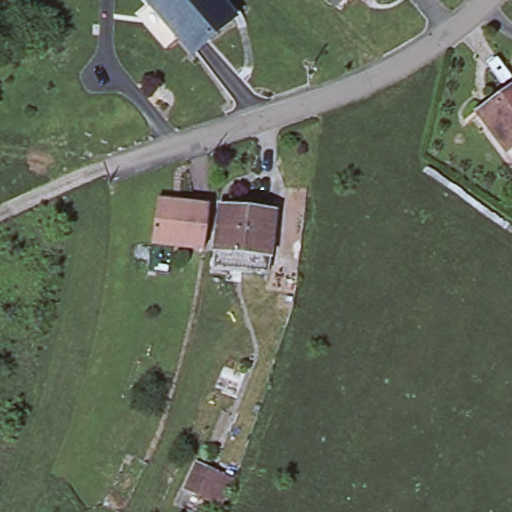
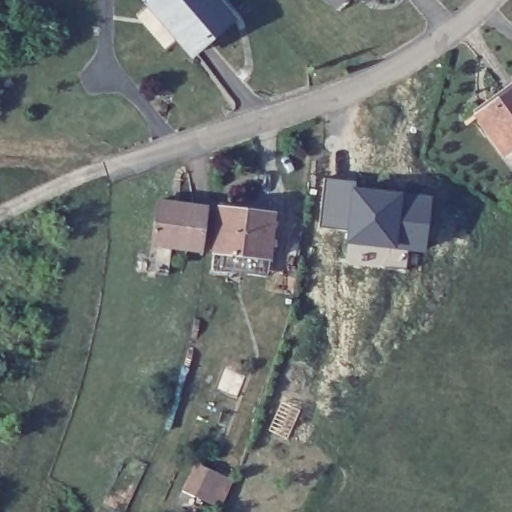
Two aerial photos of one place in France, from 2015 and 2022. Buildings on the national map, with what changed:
unchanged [(158,0),(220,0),(235,17),(192,55),(150,6),(158,0)]
unchanged [(337,7),(330,0),(352,0),(341,11),(337,7)]
unchanged [(496,150),(468,111),(512,81),(512,154),(504,160),(496,150)]
new [(354,183),(352,192),(431,197),(428,250),(347,242),(348,231),(321,228),(325,180),(354,183)]
unchanged [(145,270),(150,242),(151,235),(157,199),(208,206),(202,250),(172,245),(167,273),(145,270)]
unchanged [(214,253),(220,207),(235,210),(235,200),(255,201),(276,204),(275,214),(269,259),(267,275),(212,269),(214,253)]
unchanged [(228,476),(213,508),(182,494),(197,462),(228,476)]

